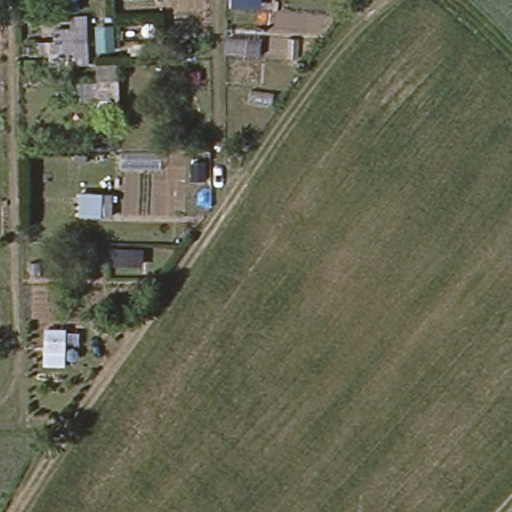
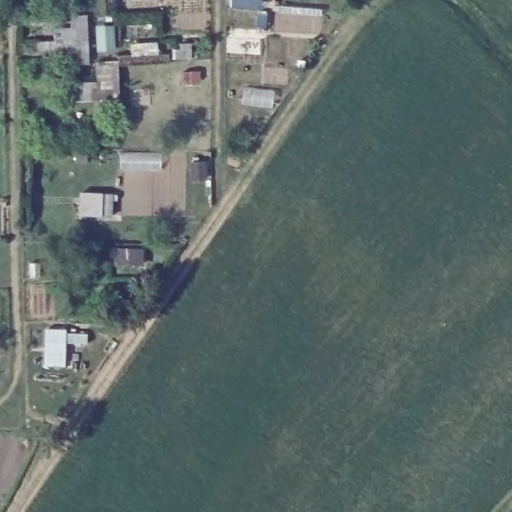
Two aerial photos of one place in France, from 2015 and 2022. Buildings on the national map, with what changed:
unchanged [(89,65),(65,66),(65,56),(52,56),(51,31),(69,30),(68,17),(88,16),(89,65)]
unchanged [(118,63),(120,117),(102,118),(101,103),(74,104),(73,85),(97,84),(96,64),(118,63)]
unchanged [(85,192),(111,194),(112,217),(86,217),(85,192)]
unchanged [(67,365),(43,365),(43,325),(67,326),(67,365)]

